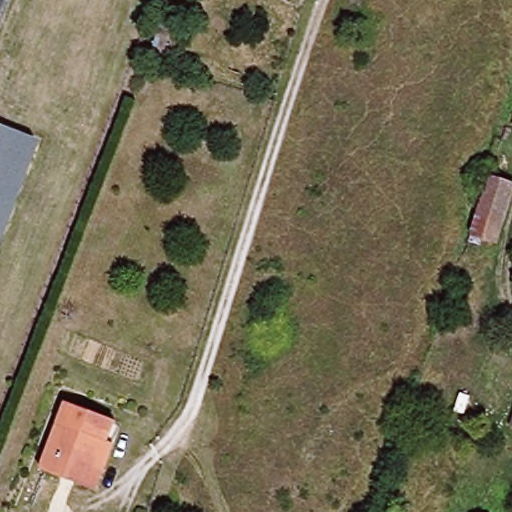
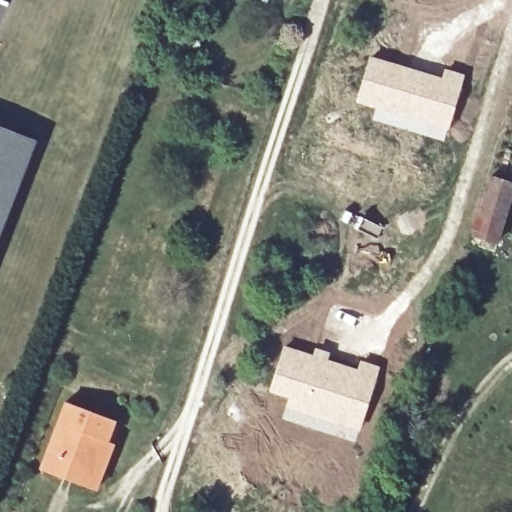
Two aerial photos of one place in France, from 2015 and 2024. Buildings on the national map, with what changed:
new [(370,55),(441,76),(443,67),(466,74),(445,142),(372,119),(375,108),(355,102),(370,55)]
unchanged [(2,227),(0,226),(0,127),(36,140),(2,227)]
unchanged [(477,235),(494,177),(512,183),(512,207),(501,242),(489,239),(486,237),(483,247),(473,244),(477,235)]
unchanged [(2,227),(0,233),(0,226),(2,227)]
new [(283,344),(312,353),(315,346),(331,352),(328,358),(356,367),(359,359),(380,366),(355,441),(281,417),(287,397),(267,391),(283,344)]
unchanged [(94,490),(77,483),(40,469),(65,402),(114,420),(106,442),(111,445),(94,490)]

